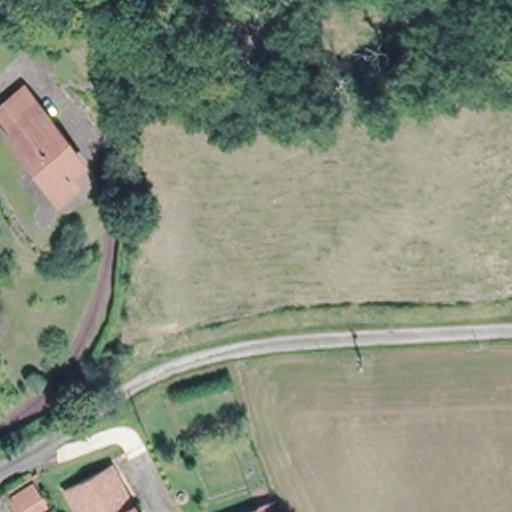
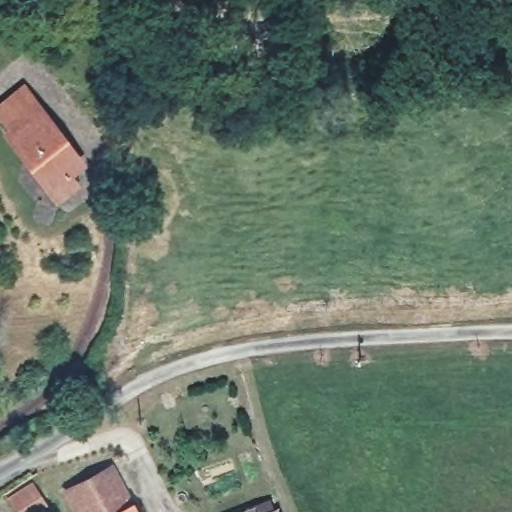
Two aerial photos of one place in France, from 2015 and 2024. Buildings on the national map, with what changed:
unchanged [(55,198),(43,182),(4,132),(9,127),(0,114),(0,100),(23,84),(78,155),(66,164),(79,180),(55,198)]
unchanged [(129,455),(103,474),(95,463),(121,444),(129,455)]
unchanged [(78,512),(72,499),(120,476),(137,512),(78,512)]
unchanged [(45,509),(36,512),(12,512),(7,502),(34,487),(45,509)]
unchanged [(256,512),(204,512),(249,494),(256,512)]
unchanged [(275,512),(266,512),(274,509),(275,512)]

